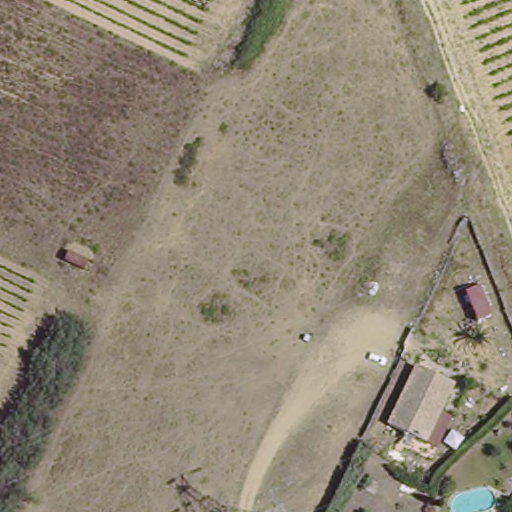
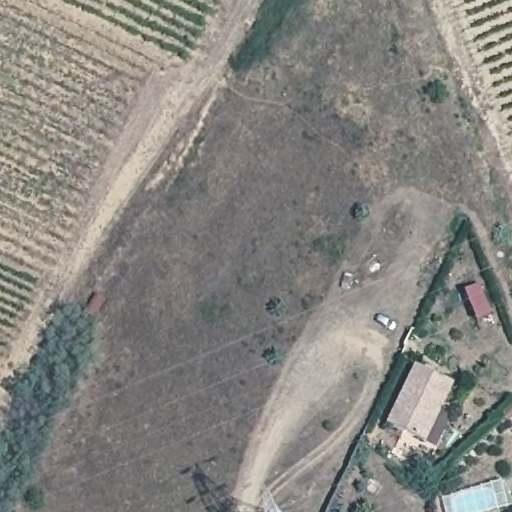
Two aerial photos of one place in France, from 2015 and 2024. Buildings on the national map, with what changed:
unchanged [(75,237),(94,249),(86,267),(66,256),(75,237)]
unchanged [(437,447),(424,440),(392,423),(418,367),(452,383),(442,403),(455,415),(437,447)]

